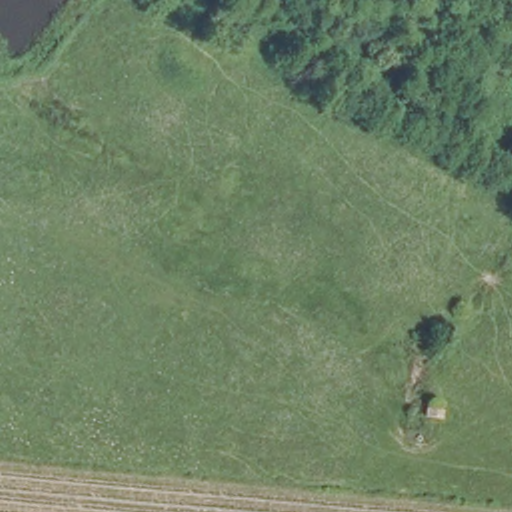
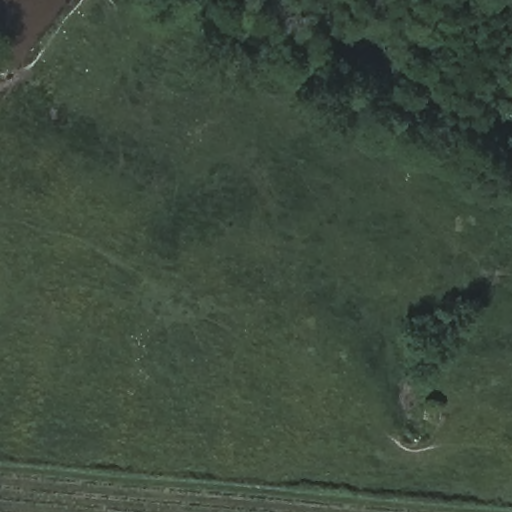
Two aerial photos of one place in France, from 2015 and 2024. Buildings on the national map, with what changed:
unchanged [(441,404),(441,416),(429,416),(429,404),(441,404)]

